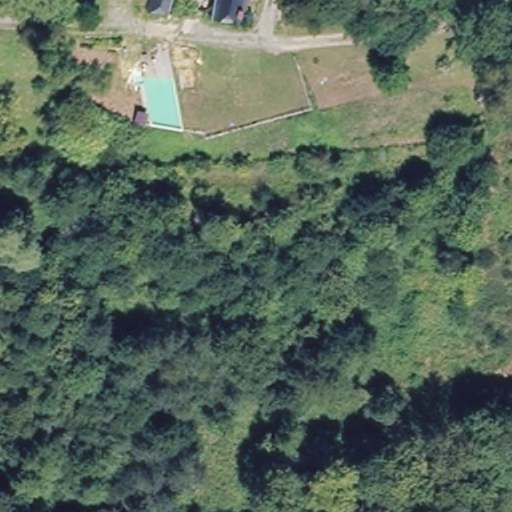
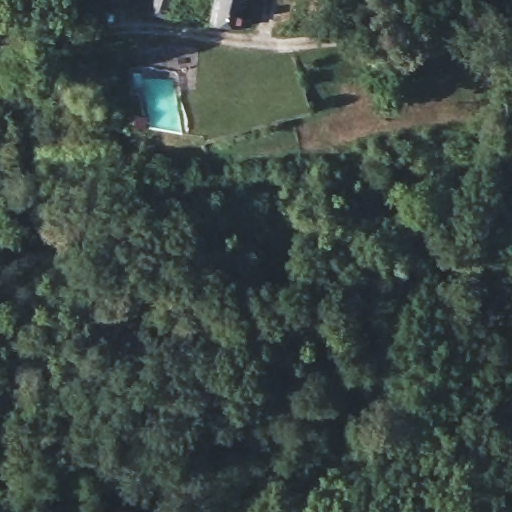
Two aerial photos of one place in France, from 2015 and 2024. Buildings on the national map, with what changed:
unchanged [(162,19),(147,18),(147,10),(150,0),(168,0),(162,19)]
unchanged [(248,14),(258,14),(258,24),(208,26),(213,0),(249,0),(248,14)]

